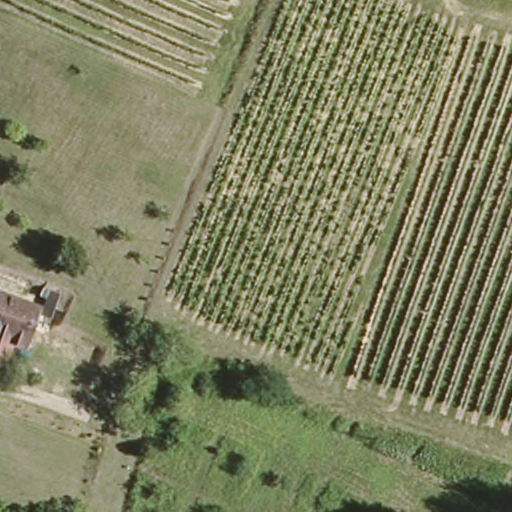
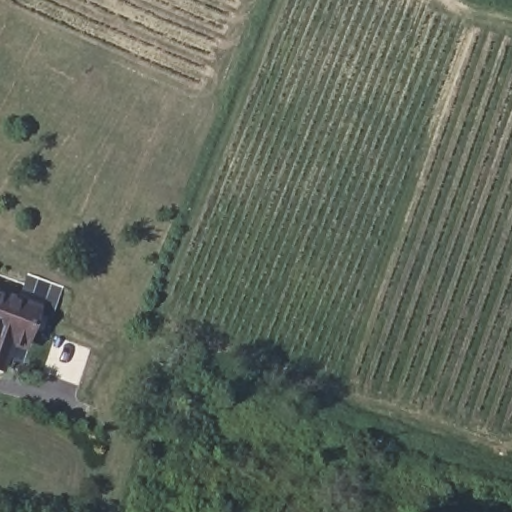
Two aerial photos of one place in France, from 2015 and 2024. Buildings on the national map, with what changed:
unchanged [(19,305),(0,334),(0,297),(19,305)]
unchanged [(0,336),(0,334),(19,305),(42,313),(36,329),(51,335),(43,354),(29,348),(18,378),(0,370),(11,341),(0,336)]

